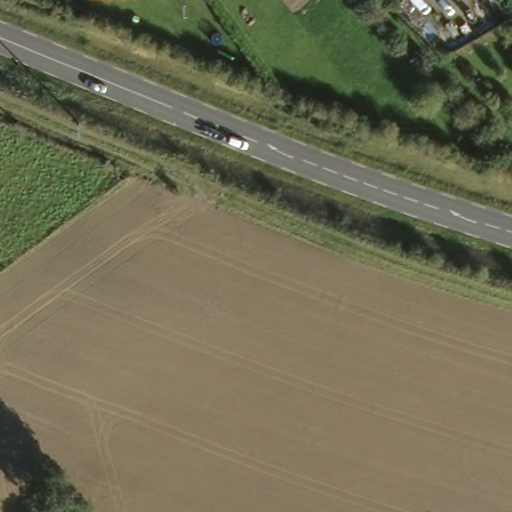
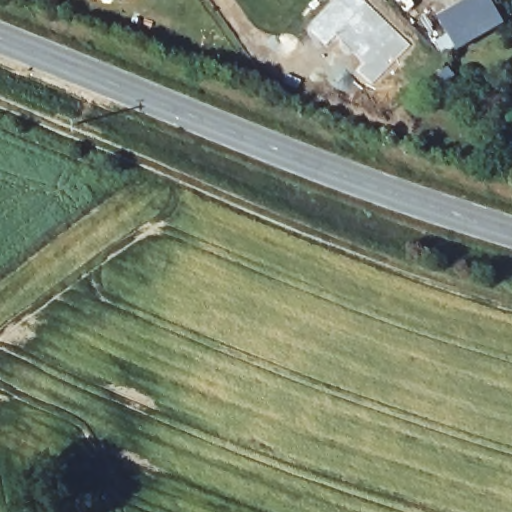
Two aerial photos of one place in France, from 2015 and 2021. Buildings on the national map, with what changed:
new [(492,0),(503,21),(446,52),(438,38),(450,32),(437,12),(459,0),(492,0)]

